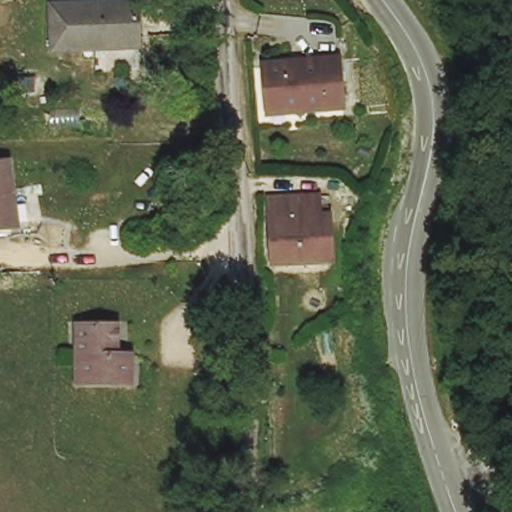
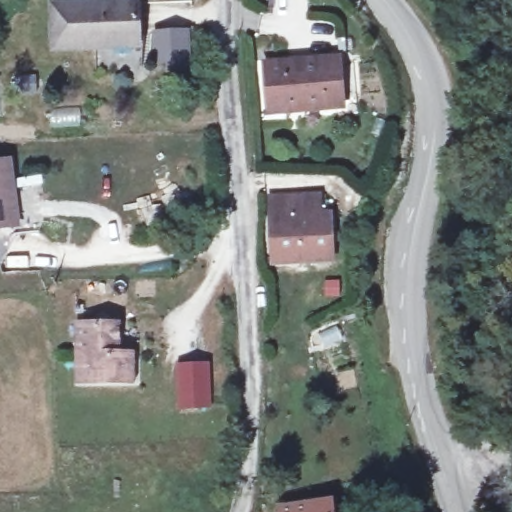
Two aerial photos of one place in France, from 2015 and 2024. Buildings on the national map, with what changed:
unchanged [(54,39),(54,0),(138,1),(137,29),(111,29),(110,41),(54,39)]
new [(185,35),(190,35),(192,65),(155,67),(153,31),(185,29),(185,35)]
unchanged [(300,113),(300,106),(262,107),(261,66),(335,63),(336,111),(300,113)]
unchanged [(0,240),(0,162),(12,161),(15,193),(10,195),(12,225),(12,239),(0,240)]
unchanged [(319,225),(327,225),(328,270),(270,271),(270,227),(270,202),(289,201),(289,205),(319,205),(319,225)]
unchanged [(77,324),(116,323),(116,351),(125,352),(124,380),(75,379),(77,324)]
new [(210,408),(175,409),(175,364),(210,363),(210,408)]
new [(280,509),(330,503),(331,512),(281,512),(280,509)]

